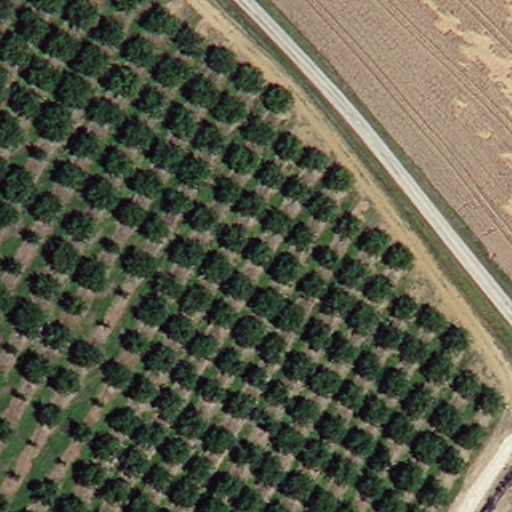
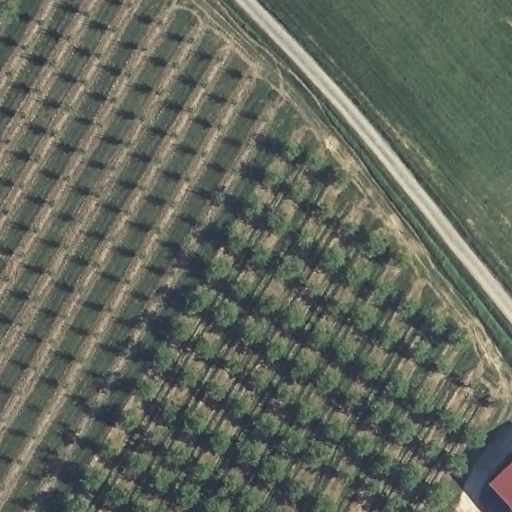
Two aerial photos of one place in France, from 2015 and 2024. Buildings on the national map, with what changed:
new [(512,464),(512,512),(508,512),(485,488),(512,464)]

